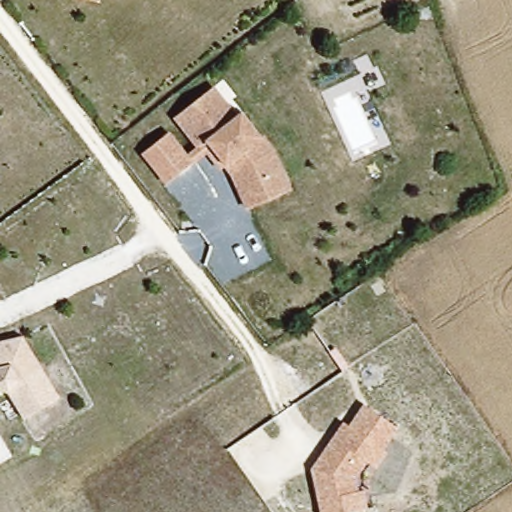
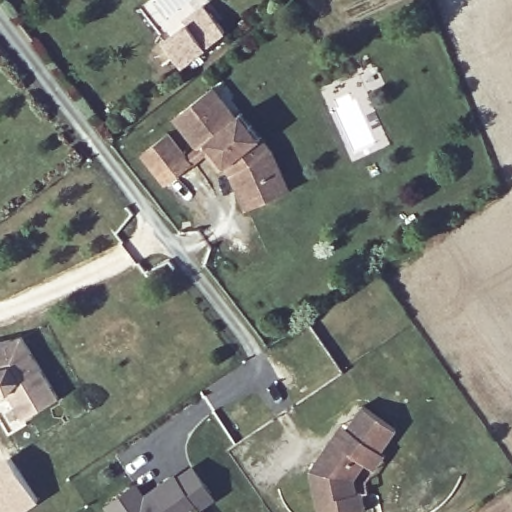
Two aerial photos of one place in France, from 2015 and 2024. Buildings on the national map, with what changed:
new [(189,25),(185,20),(207,5),(227,32),(182,65),(165,42),(189,25)]
unchanged [(275,154),(290,194),(246,210),(233,175),(226,165),(221,169),(202,145),(200,147),(176,116),(226,80),(239,96),(235,100),(275,154)]
unchanged [(192,163),(166,182),(143,152),(170,132),(192,163)]
unchanged [(25,420),(9,395),(0,391),(0,344),(22,338),(60,398),(25,420)]
unchanged [(311,470),(344,420),(348,423),(363,402),(398,427),(384,449),(389,453),(378,470),(367,463),(357,476),(360,490),(365,490),(368,511),(364,512),(320,512),(311,470)]
new [(40,500),(23,512),(0,512),(0,461),(10,455),(40,500)]
new [(142,500),(156,490),(172,479),(175,482),(191,471),(211,500),(193,512),(108,512),(105,507),(135,488),(142,500)]

